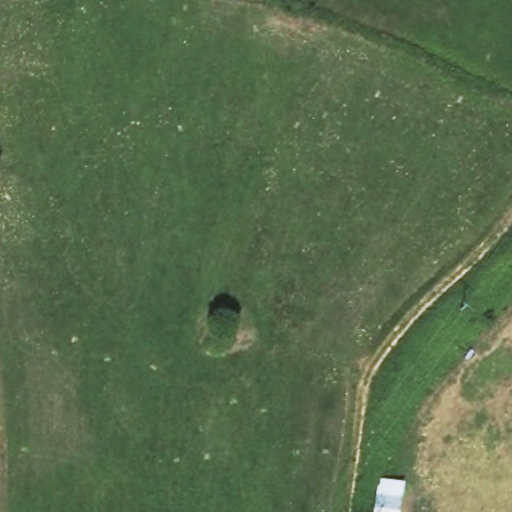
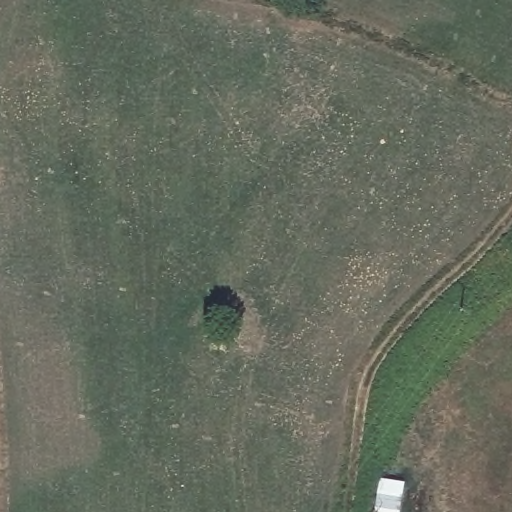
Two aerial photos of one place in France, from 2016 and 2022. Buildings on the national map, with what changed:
unchanged [(408,475),(396,511),(373,507),(382,471),(408,475)]

